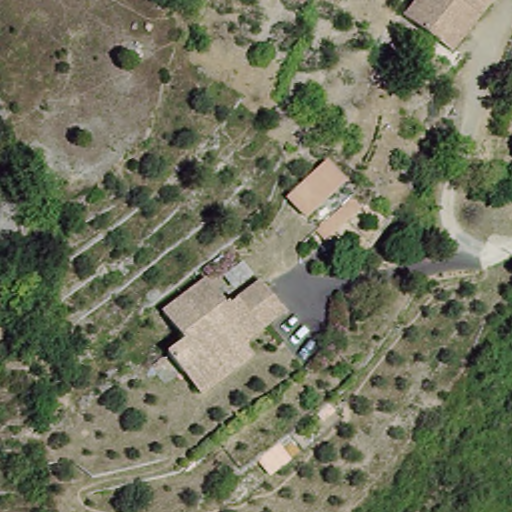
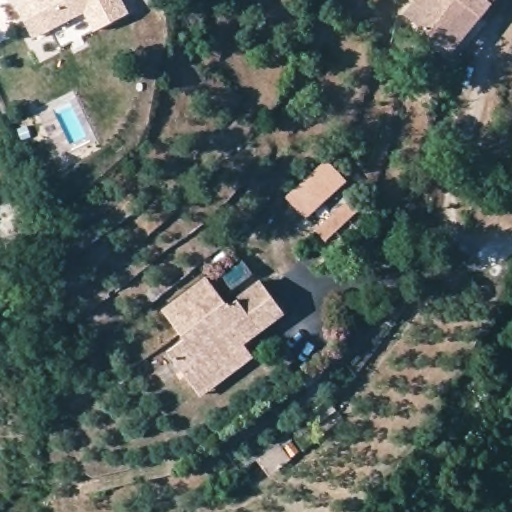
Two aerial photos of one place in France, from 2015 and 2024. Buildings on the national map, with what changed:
new [(26,0),(119,0),(127,14),(95,30),(85,9),(33,36),(17,5),(26,0)]
unchanged [(446,44),(413,18),(426,0),(500,0),(495,7),(484,22),(460,55),(446,44)]
unchanged [(331,155),(353,180),(326,205),(310,221),(288,198),(305,181),(331,155)]
unchanged [(418,168),(428,172),(423,193),(411,189),(418,168)]
unchanged [(364,200),(375,212),(337,247),(327,236),(364,200)]
unchanged [(209,398),(187,374),(170,356),(186,339),(164,314),(205,275),(229,303),(260,275),(279,296),(287,305),(247,341),(258,354),(209,398)]

